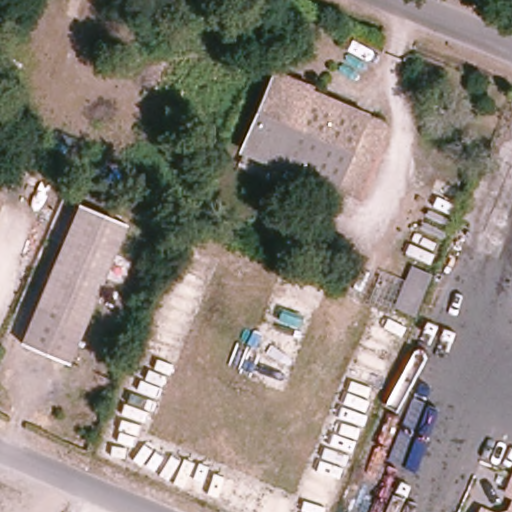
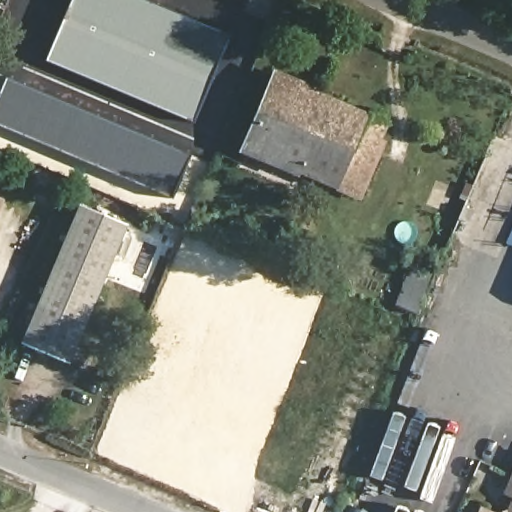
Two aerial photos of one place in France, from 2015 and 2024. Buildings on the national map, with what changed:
new [(229,35),(193,121),(46,60),(71,0),(144,0),(229,35)]
new [(5,77),(191,154),(174,198),(0,126),(0,89),(5,77)]
unchanged [(356,196),(335,188),(240,151),(270,78),(364,114),(386,121),(378,140),(371,159),(356,196)]
unchanged [(73,361),(26,345),(80,206),(130,226),(73,361)]
unchanged [(417,318),(397,310),(414,266),(433,276),(417,318)]
unchanged [(512,481),(512,495),(508,492),(512,481)]
unchanged [(512,512),(509,512),(512,505),(512,512)]
new [(346,512),(348,506),(361,512),(346,512)]
unchanged [(486,512),(482,512),(482,510),(486,512)]

